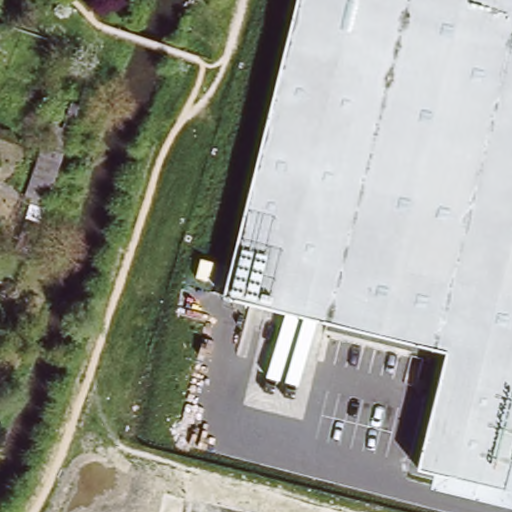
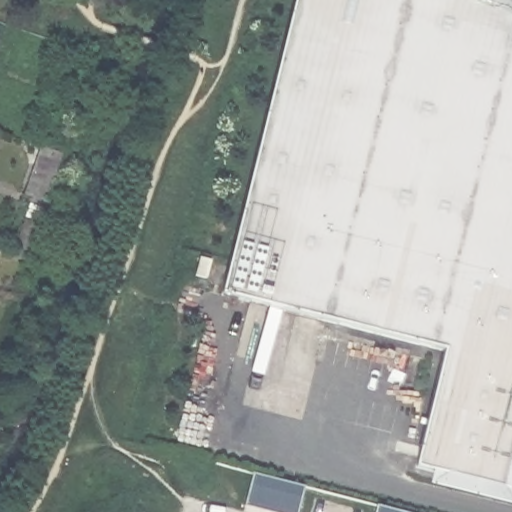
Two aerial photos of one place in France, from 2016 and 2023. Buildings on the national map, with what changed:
unchanged [(512,504),(431,487),(435,471),(417,465),(445,350),(224,297),(297,0),(512,0),(512,504)]
unchanged [(32,171),(40,148),(42,149),(50,127),(69,133),(62,155),(54,179),(32,171)]
new [(307,487),(300,512),(271,512),(247,506),(255,474),(307,487)]
new [(405,512),(378,512),(379,506),(405,512)]

